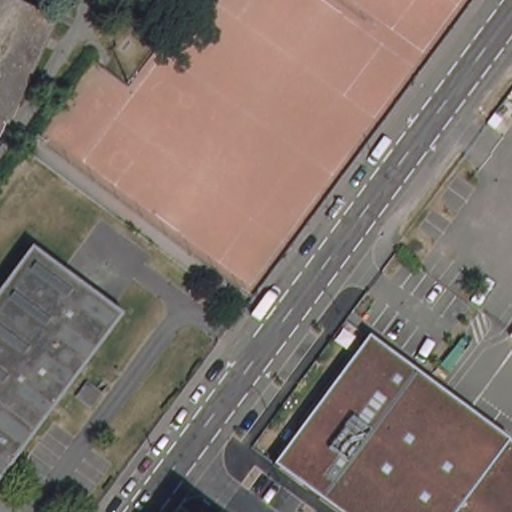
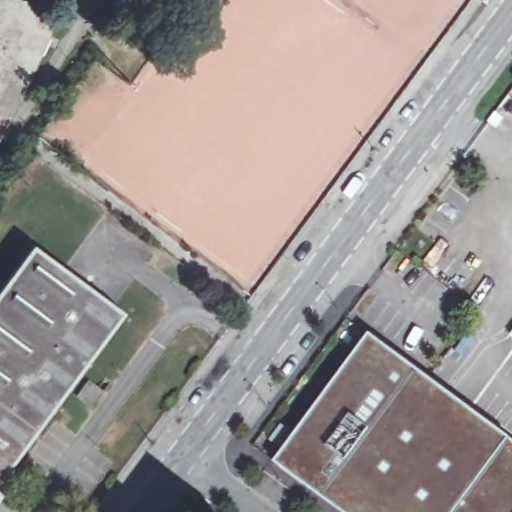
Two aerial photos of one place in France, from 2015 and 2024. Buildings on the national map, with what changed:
unchanged [(60,17),(60,19),(20,104),(10,122),(8,121),(0,138),(0,0),(25,0),(33,4),(60,17)]
unchanged [(126,314),(0,483),(0,291),(34,246),(126,314)]
unchanged [(370,337),(512,442),(512,512),(335,512),(273,467),(370,337)]

